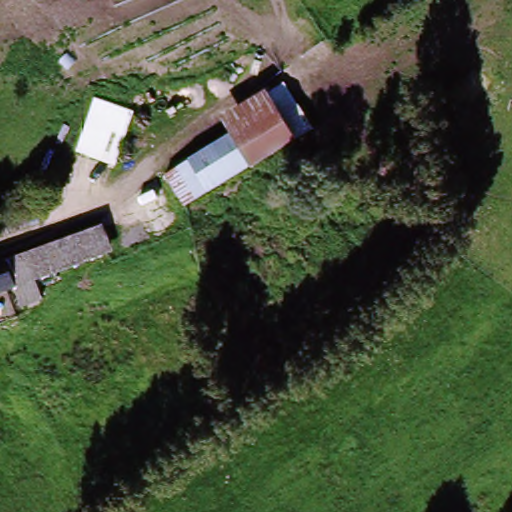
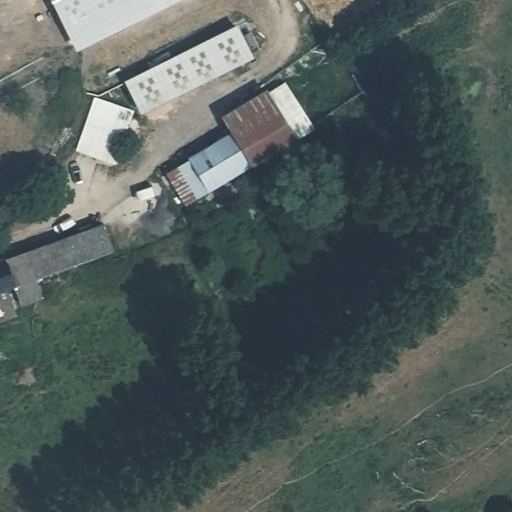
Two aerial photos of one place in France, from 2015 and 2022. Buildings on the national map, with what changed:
new [(184,0),(78,51),(52,0),(184,0)]
new [(253,59),(139,115),(123,81),(236,24),(253,59)]
unchanged [(221,115),(283,80),(315,128),(294,149),(277,115),(242,132),(231,137),(221,115)]
unchanged [(88,100),(133,112),(117,166),(72,152),(88,100)]
unchanged [(294,149),(249,172),(247,169),(231,137),(277,115),(294,149)]
unchanged [(181,203),(166,170),(231,137),(247,169),(181,203)]
unchanged [(61,268),(1,292),(5,300),(0,302),(0,263),(88,230),(93,250),(94,255),(61,268)]

